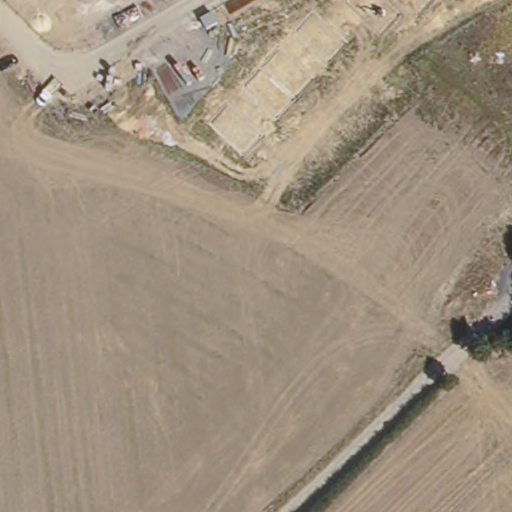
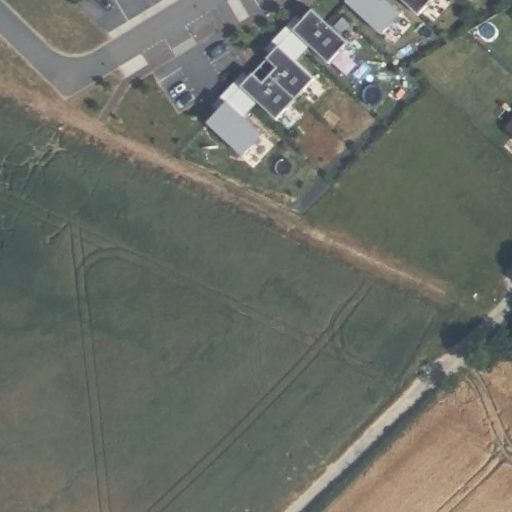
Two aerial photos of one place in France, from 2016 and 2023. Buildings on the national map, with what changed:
new [(382,32),(348,0),(390,0),(402,11),(382,32)]
new [(419,13),(405,0),(432,0),(419,13)]
new [(287,36),(313,8),(349,41),(330,62),(310,44),(303,51),(287,36)]
new [(297,14),(302,19),(271,53),(266,48),(297,14)]
new [(235,92),(287,36),(303,51),(296,59),(315,77),(278,118),(258,100),(251,107),(235,92)]
new [(244,71),(250,76),(219,110),(213,104),(244,71)]
new [(235,92),(251,107),(244,115),(264,133),(244,154),(208,121),(235,92)]
new [(512,122),(512,130),(508,126),(512,122)]

